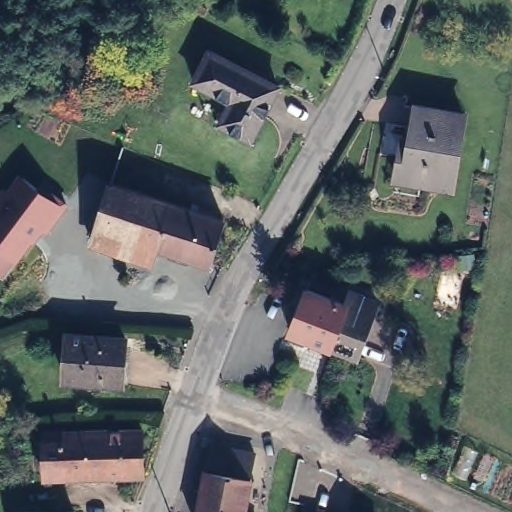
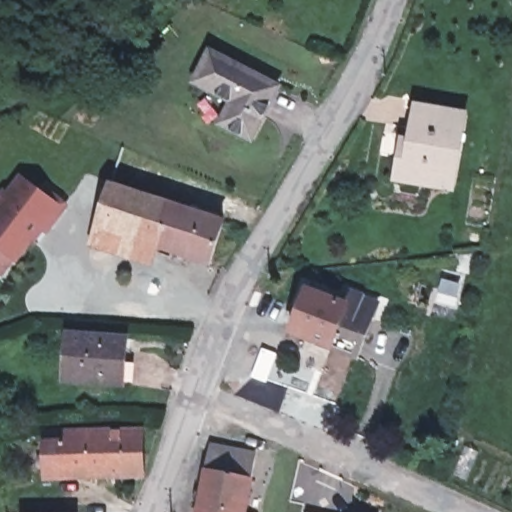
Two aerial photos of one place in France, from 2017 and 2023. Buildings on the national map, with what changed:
unchanged [(276,85),(250,137),(218,122),(229,101),(191,82),(208,50),(276,85)]
unchanged [(402,140),(411,141),(416,107),(462,116),(449,185),(396,175),(402,140)]
unchanged [(48,238),(39,233),(16,265),(11,263),(3,275),(0,274),(0,188),(4,190),(16,172),(68,207),(48,238)]
unchanged [(208,262),(118,232),(112,248),(91,241),(113,182),(223,219),(208,262)]
unchanged [(339,297),(344,286),(371,296),(351,350),(284,325),(300,282),(339,297)]
unchanged [(119,333),(114,376),(59,372),(63,328),(119,333)]
unchanged [(151,474),(53,476),(53,431),(151,428),(151,474)]
unchanged [(239,511),(242,512),(195,512),(197,500),(191,499),(193,489),(199,490),(209,445),(253,454),(239,511)]

